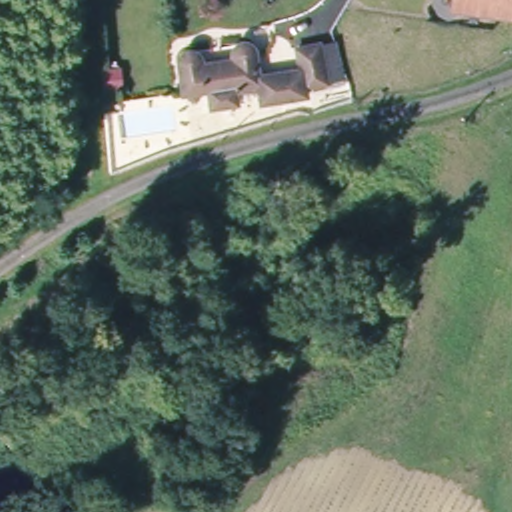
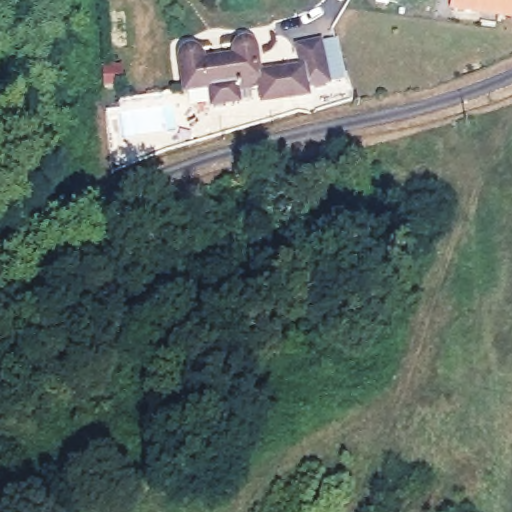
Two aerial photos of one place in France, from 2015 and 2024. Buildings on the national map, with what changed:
unchanged [(512,0),(512,16),(486,13),(458,9),(459,0),(512,0)]
unchanged [(235,84),(237,95),(212,99),(209,81),(185,84),(180,53),(181,50),(181,49),(182,47),(183,45),(185,44),(186,44),(188,43),(190,43),(192,43),(194,43),(196,44),(197,44),(199,46),(200,48),(201,49),(202,56),(234,53),(234,43),(235,41),(236,40),(237,39),(238,38),(240,36),(241,36),(243,35),(245,35),(246,35),(248,36),(250,36),(251,38),(253,39),(254,40),(255,41),(259,69),(302,63),(297,42),(320,37),(329,75),(299,81),(300,90),(262,96),(259,80),(235,84)]

